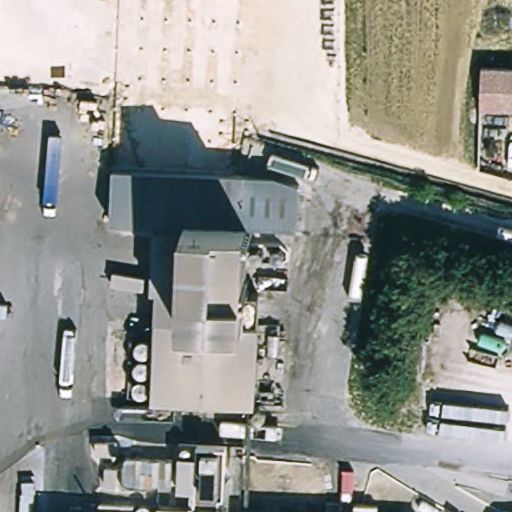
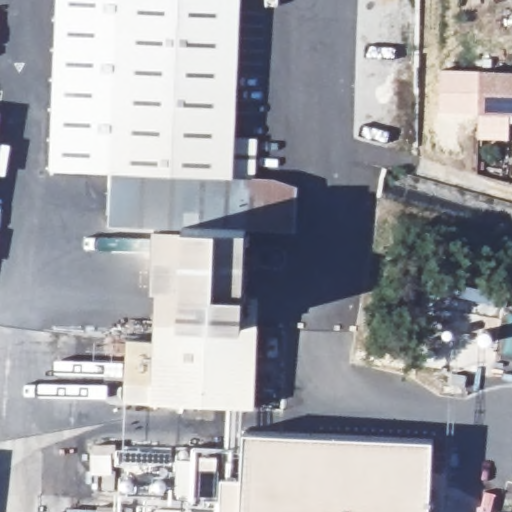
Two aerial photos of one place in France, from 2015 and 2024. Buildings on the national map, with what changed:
new [(110,170),(51,169),(58,0),(117,0),(110,170)]
new [(117,0),(240,0),(233,177),(110,170),(117,0)]
new [(480,114),(438,111),(438,70),(484,72),(480,114)]
unchanged [(480,114),(484,72),(512,73),(512,116),(480,114)]
unchanged [(0,113),(1,113),(0,120),(0,113)]
unchanged [(157,310),(157,286),(151,285),(154,228),(108,226),(110,170),(244,177),(242,230),(279,231),(280,312),(256,313),(157,310)]
unchanged [(244,177),(296,178),(298,232),(279,231),(242,230),(244,177)]
unchanged [(256,313),(253,398),(154,395),(157,310),(256,313)]
new [(429,512),(218,512),(221,475),(242,476),(243,450),(244,431),(433,440),(429,512)]
new [(243,450),(242,476),(221,475),(218,512),(155,508),(154,512),(115,512),(117,492),(171,495),(173,460),(173,449),(243,450)]
unchanged [(117,459),(173,460),(171,495),(114,492),(117,459)]
unchanged [(218,512),(154,512),(155,508),(218,512)]

